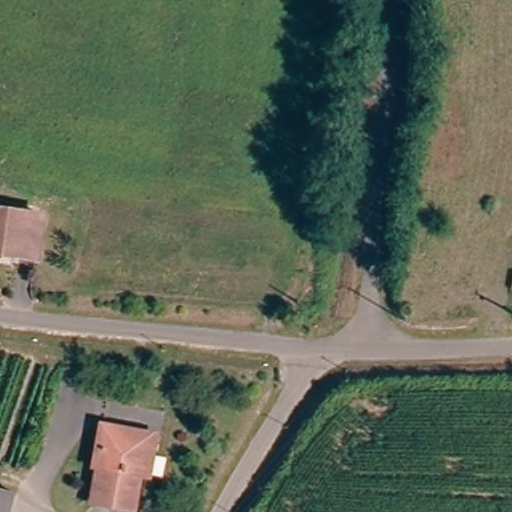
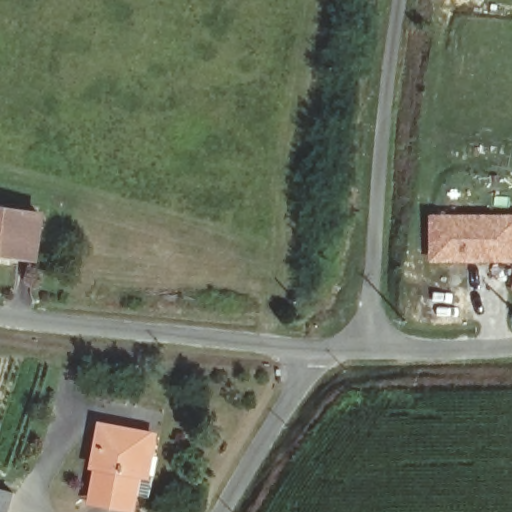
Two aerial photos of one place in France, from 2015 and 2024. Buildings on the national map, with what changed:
unchanged [(0,259),(0,208),(48,215),(40,266),(0,259)]
new [(512,214),(512,263),(428,263),(428,214),(512,214)]
unchanged [(97,503),(104,467),(96,466),(106,427),(135,433),(160,439),(150,478),(145,477),(140,477),(134,510),(97,503)]
unchanged [(14,490),(8,512),(0,512),(0,486),(14,490)]

